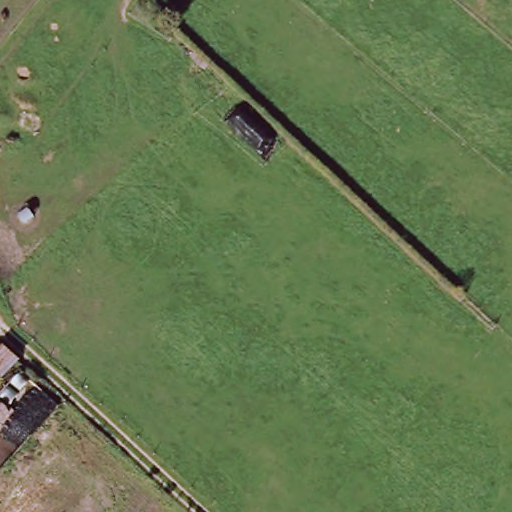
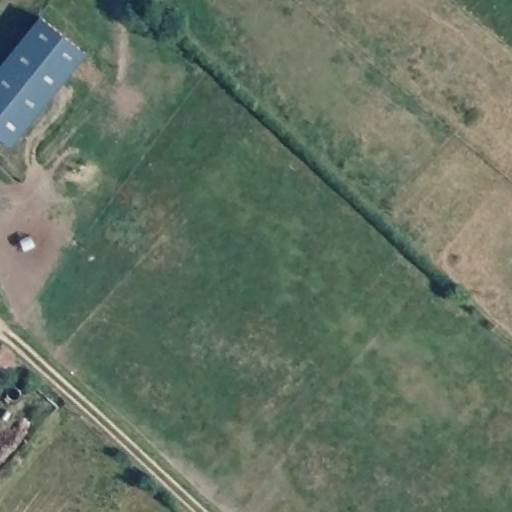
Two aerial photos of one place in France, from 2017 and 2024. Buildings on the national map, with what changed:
new [(7,150),(0,144),(0,67),(39,20),(84,57),(7,150)]
new [(18,360),(0,382),(0,345),(18,360)]

